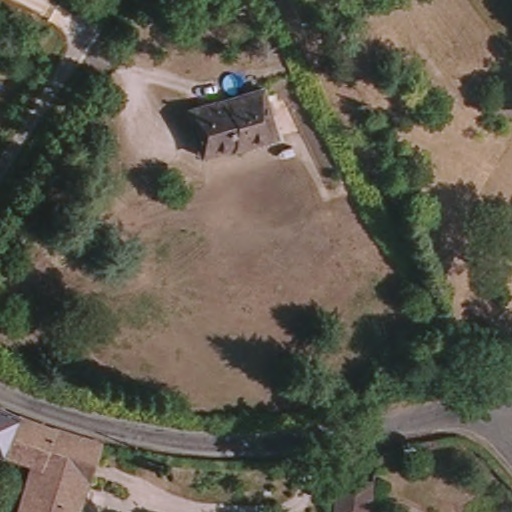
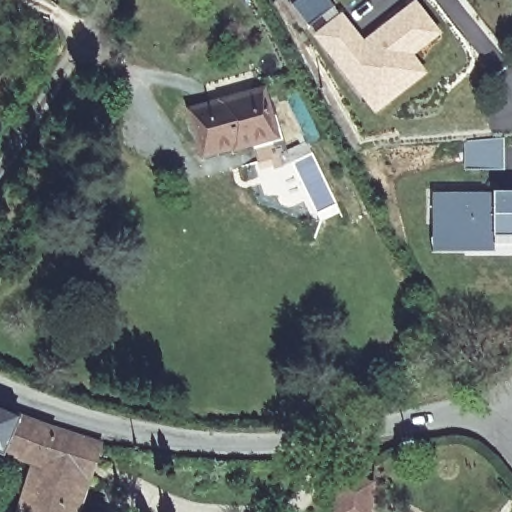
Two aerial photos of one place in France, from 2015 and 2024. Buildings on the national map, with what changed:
new [(293,0),(330,0),(335,5),(322,15),(309,24),(291,2),(293,0)]
new [(326,21),(322,15),(335,5),(339,11),(341,10),(363,37),(412,0),(417,0),(442,32),(414,54),(428,72),(374,113),(312,33),(326,21)]
unchanged [(269,140),(209,156),(196,111),(257,95),(269,140)]
new [(505,137),(505,170),(464,169),(463,139),(505,137)]
new [(444,217),(432,218),(431,195),(503,193),(503,199),(512,199),(512,254),(507,254),(507,242),(445,243),(444,217)]
unchanged [(7,417),(43,431),(99,449),(81,512),(24,512),(37,469),(11,460),(0,455),(0,414),(7,417)]
unchanged [(372,481),(368,512),(333,512),(336,480),(372,481)]

